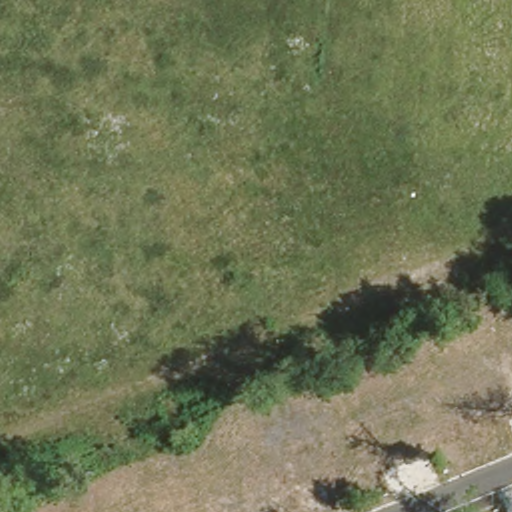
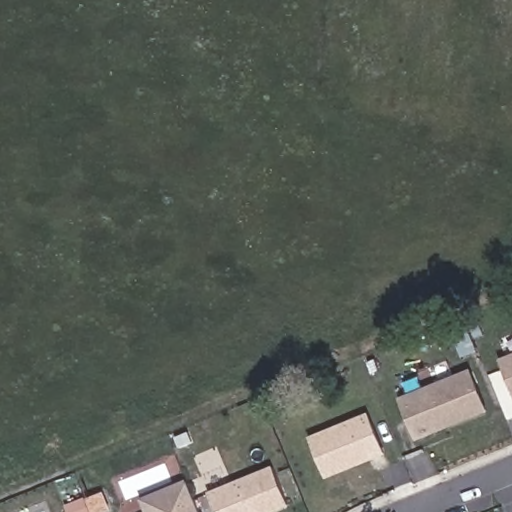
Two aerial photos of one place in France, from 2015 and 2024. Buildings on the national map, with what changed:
new [(512,353),(512,397),(496,359),(512,353)]
new [(400,399),(470,372),(485,412),(416,439),(400,399)]
new [(308,440),(365,417),(380,455),(323,478),(308,440)]
new [(264,512),(215,512),(206,491),(271,465),(286,503),(264,512)]
new [(198,512),(163,512),(168,510),(163,512),(147,512),(142,500),(161,492),(186,482),(198,512)]

